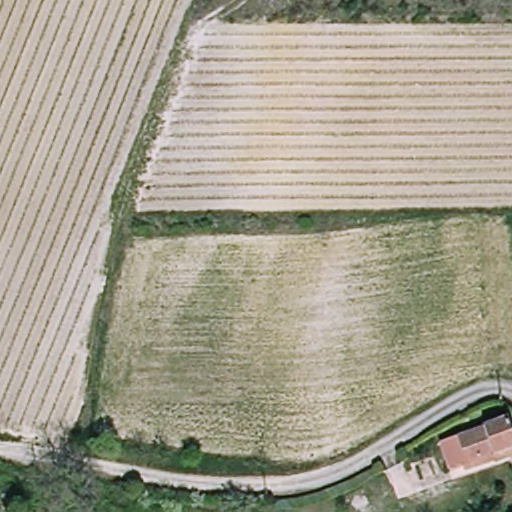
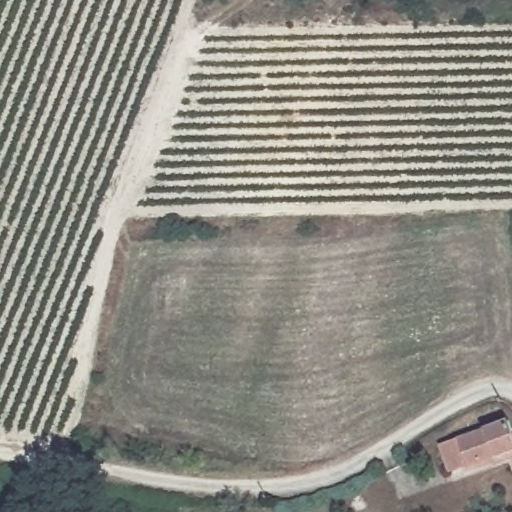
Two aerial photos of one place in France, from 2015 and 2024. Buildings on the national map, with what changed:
unchanged [(470,465),(453,469),(440,440),(512,414),(512,461),(472,473),(470,465)]

